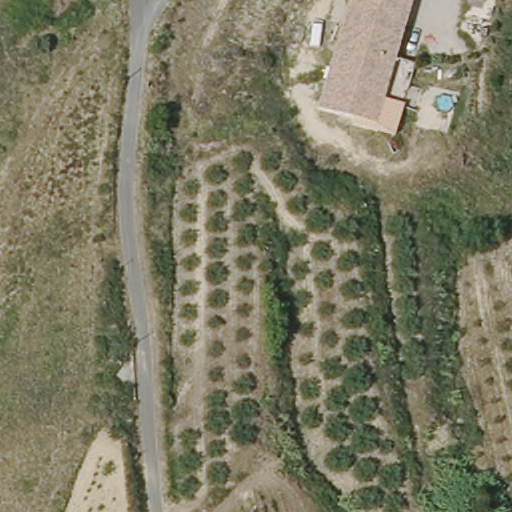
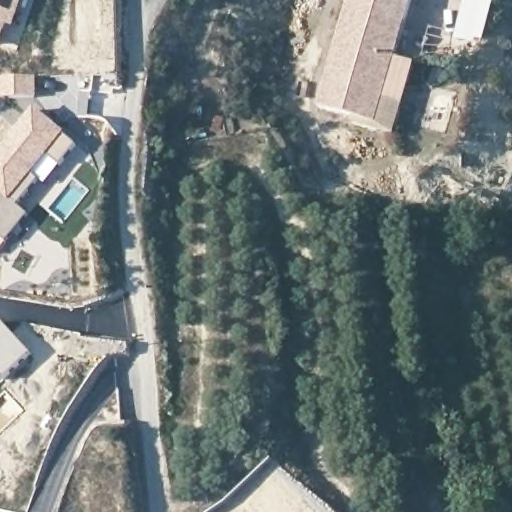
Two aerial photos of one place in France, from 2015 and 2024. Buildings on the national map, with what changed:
new [(25,0),(14,29),(7,26),(0,45),(0,0),(25,0)]
unchanged [(393,136),(354,126),(355,120),(317,110),(350,0),(413,0),(392,69),(409,70),(393,136)]
unchanged [(498,0),(497,3),(483,0),(498,0)]
new [(36,76),(36,96),(0,97),(0,76),(36,76)]
new [(78,146),(62,166),(49,156),(33,175),(40,182),(18,205),(0,194),(0,146),(35,106),(78,146)]
new [(18,205),(29,214),(0,249),(0,194),(18,205)]
new [(2,320),(32,353),(1,380),(0,379),(0,322),(2,320)]

